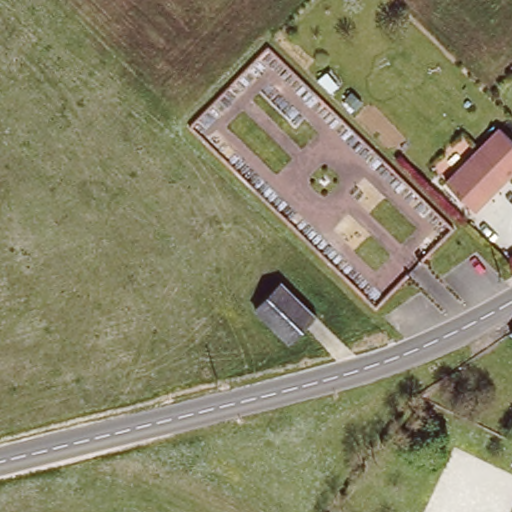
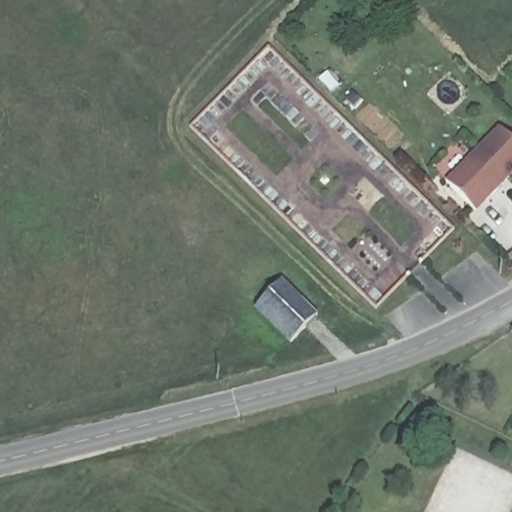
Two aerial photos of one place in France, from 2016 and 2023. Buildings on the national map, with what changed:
unchanged [(474,219),(444,191),(498,134),(512,146),(512,178),(474,219)]
unchanged [(316,325),(291,352),(250,315),(275,286),(316,325)]
unchanged [(512,332),(512,341),(503,336),(512,332)]

